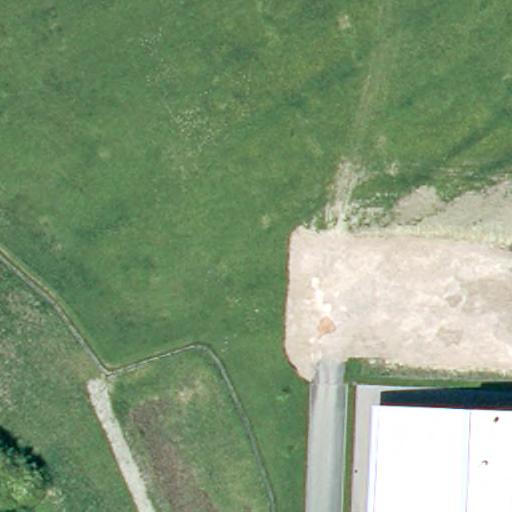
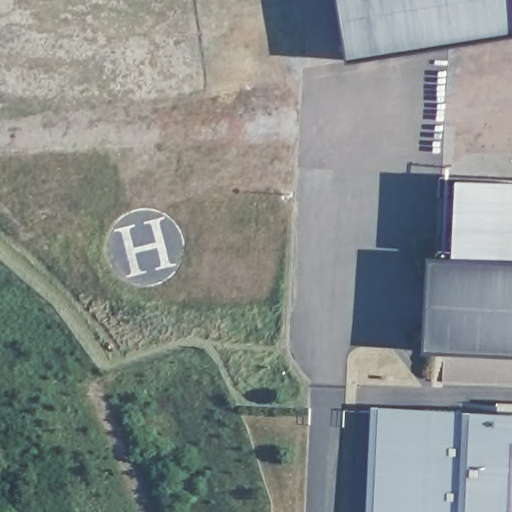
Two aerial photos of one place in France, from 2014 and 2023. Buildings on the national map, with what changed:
new [(350,60),(341,0),(512,0),(512,36),(350,60)]
new [(503,260),(512,260),(512,353),(427,349),(431,255),(441,255),(446,177),(506,181),(503,260)]
unchanged [(368,512),(373,406),(512,412),(512,512),(368,512)]

